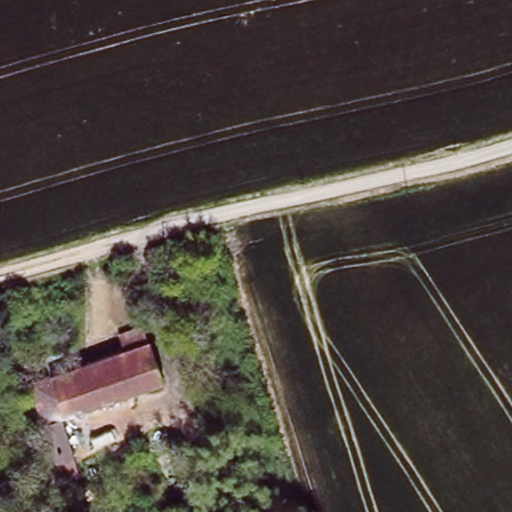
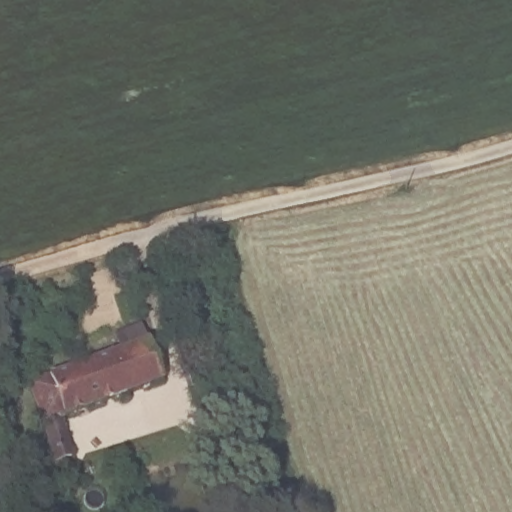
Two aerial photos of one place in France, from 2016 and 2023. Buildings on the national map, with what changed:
unchanged [(122,332),(145,324),(151,341),(163,379),(59,414),(79,471),(63,477),(31,379),(127,349),(122,332)]

